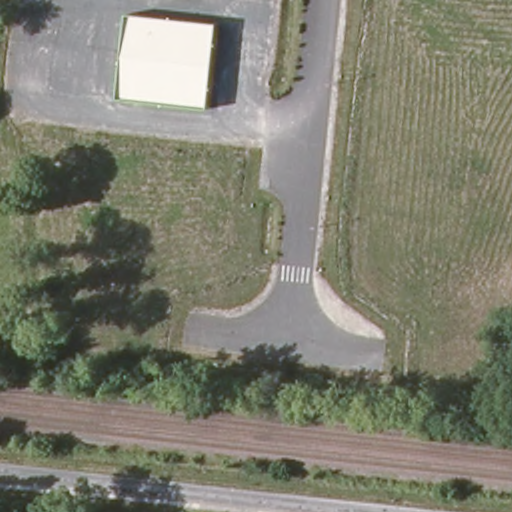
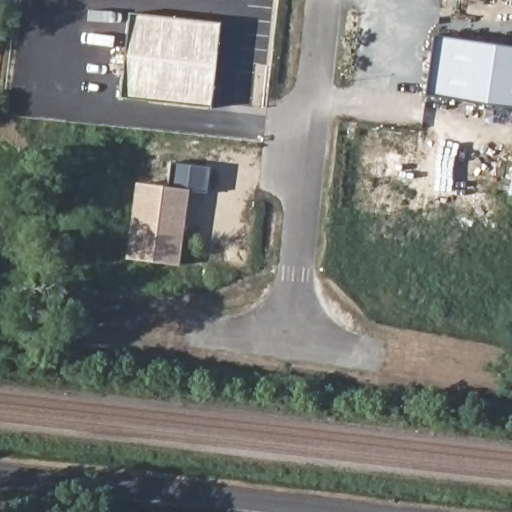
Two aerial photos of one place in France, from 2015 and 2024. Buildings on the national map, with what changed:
unchanged [(197,17),(221,20),(217,53),(211,105),(119,94),(127,28),(130,9),(197,17)]
new [(512,45),(512,108),(426,97),(433,35),(512,45)]
new [(215,161),(211,197),(192,194),(183,266),(125,259),(134,181),(166,184),(169,156),(215,161)]
new [(511,196),(512,171),(512,196),(511,196)]

